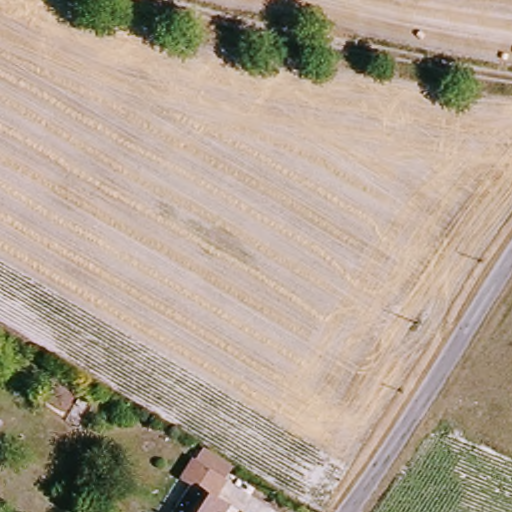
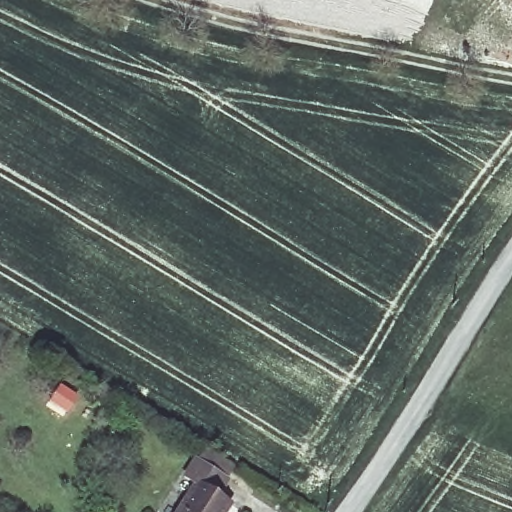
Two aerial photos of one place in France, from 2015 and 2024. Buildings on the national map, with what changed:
unchanged [(184,482),(196,462),(205,448),(219,457),(237,468),(229,481),(219,498),(234,507),(231,512),(183,512),(196,489),(184,482)]

